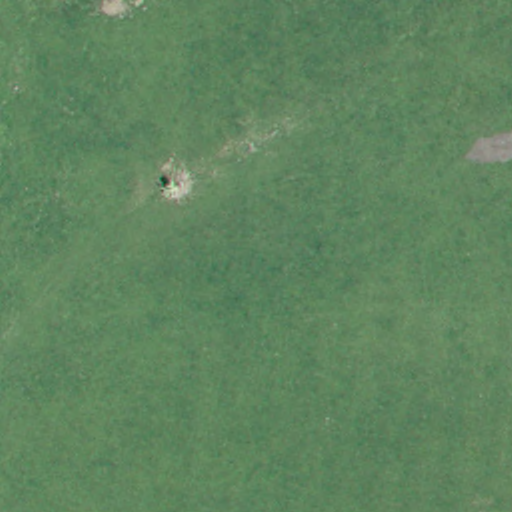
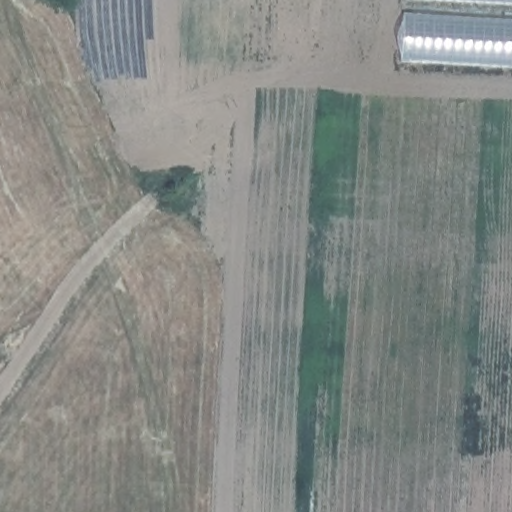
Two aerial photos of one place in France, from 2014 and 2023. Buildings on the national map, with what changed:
new [(407,1),(407,0),(512,0),(512,7),(407,1)]
new [(403,64),(406,16),(512,22),(512,71),(403,64)]

